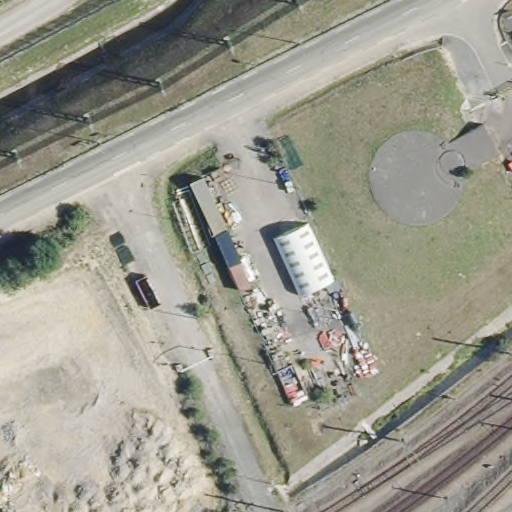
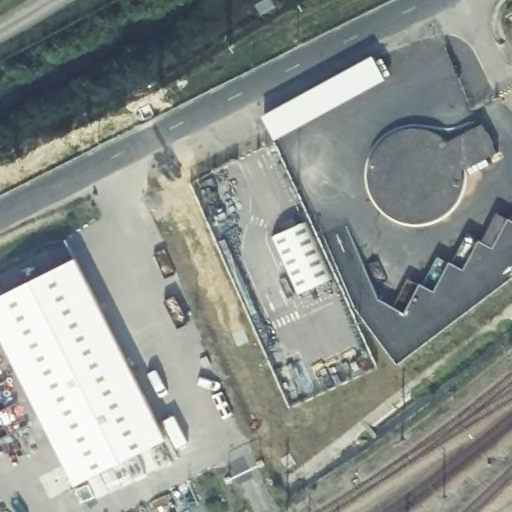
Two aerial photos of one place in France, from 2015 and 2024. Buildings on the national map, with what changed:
unchanged [(332,281),(301,295),(275,236),(307,222),(332,281)]
new [(78,260),(170,440),(80,486),(0,328),(0,300),(78,260)]

